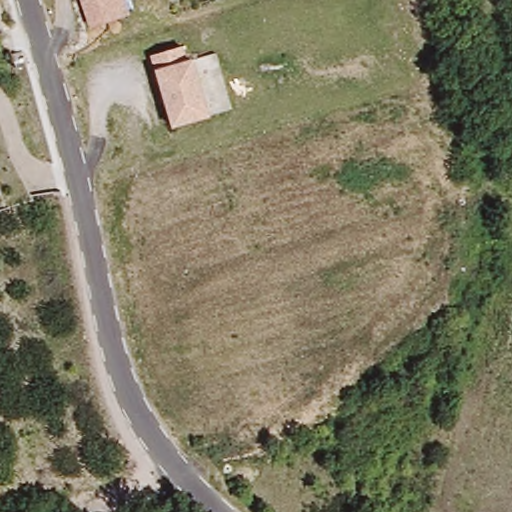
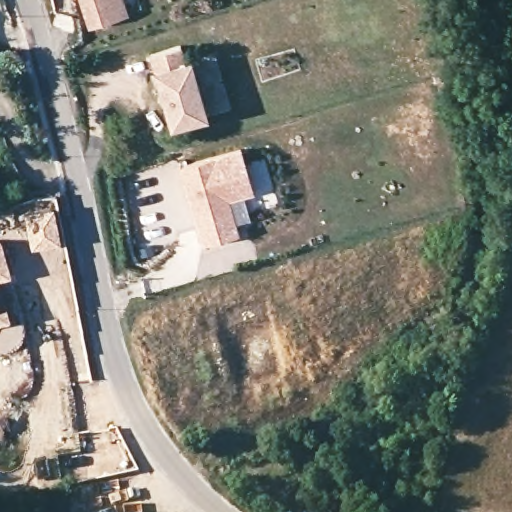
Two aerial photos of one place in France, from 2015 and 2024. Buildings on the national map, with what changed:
unchanged [(126,14),(90,25),(81,0),(123,0),(126,14)]
unchanged [(179,44),(184,59),(190,57),(207,113),(172,123),(150,53),(179,44)]
new [(247,147),(260,189),(234,197),(244,232),(208,243),(185,165),(247,147)]
new [(51,206),(58,244),(29,250),(20,211),(51,206)]
new [(0,279),(0,247),(7,277),(0,279)]
new [(0,321),(0,301),(5,319),(0,321)]

